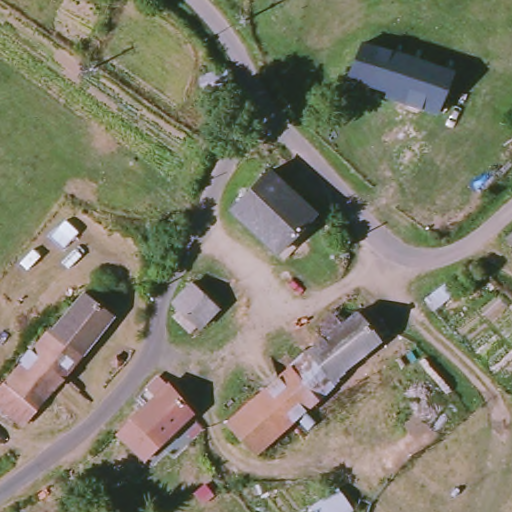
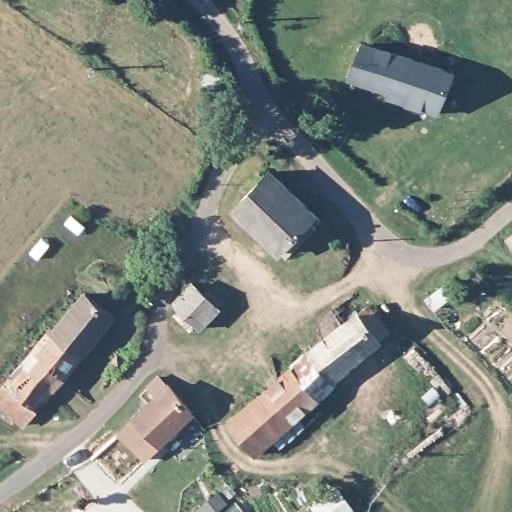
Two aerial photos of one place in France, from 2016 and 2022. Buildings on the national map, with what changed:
unchanged [(362,43),(478,83),(463,121),(386,96),(386,90),(348,77),(362,43)]
unchanged [(205,94),(201,72),(225,68),(230,91),(205,94)]
unchanged [(283,77),(288,69),(294,73),(289,81),(283,77)]
unchanged [(285,255),(277,249),(230,207),(263,170),(310,212),(318,218),(285,255)]
unchanged [(512,229),(512,253),(500,238),(512,229)]
unchanged [(135,282),(143,271),(157,280),(150,290),(135,282)]
unchanged [(201,329),(171,304),(192,281),(223,308),(201,329)]
unchanged [(395,331),(253,459),(225,427),(332,331),(318,318),(346,291),(360,305),(366,300),(395,331)]
unchanged [(81,294),(113,320),(27,423),(0,403),(0,393),(81,294)]
unchanged [(171,383),(173,380),(202,410),(148,459),(122,433),(159,394),(152,386),(162,375),(171,383)]

